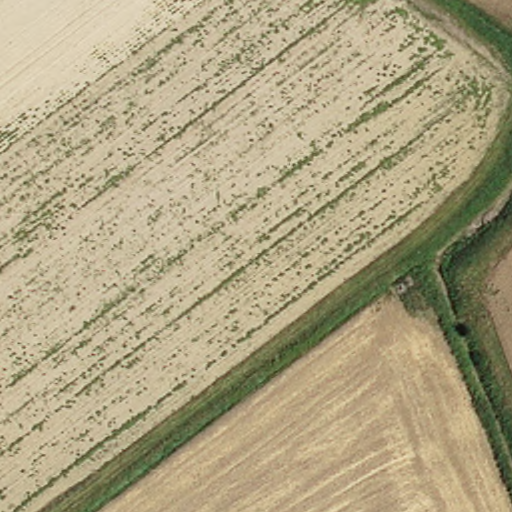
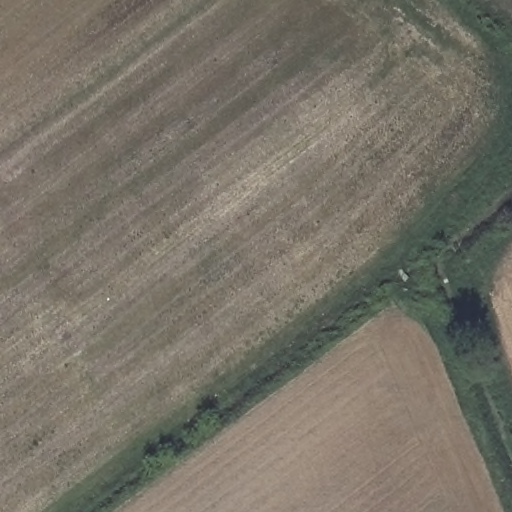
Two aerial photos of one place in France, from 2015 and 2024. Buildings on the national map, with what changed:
[]

